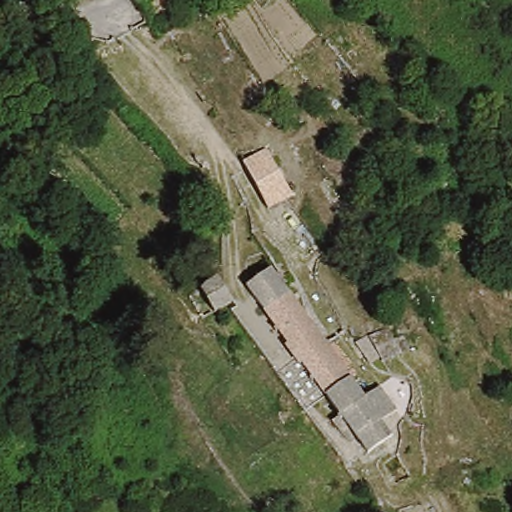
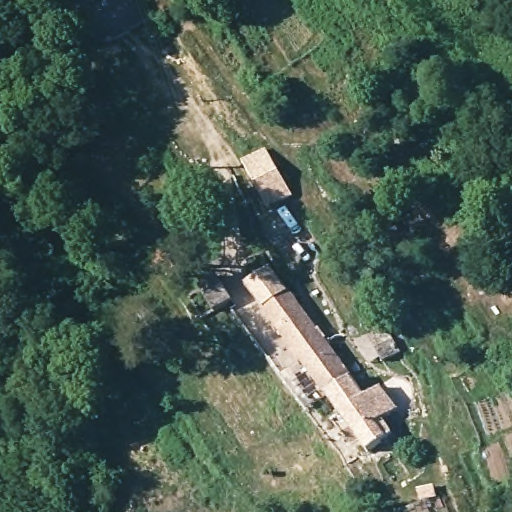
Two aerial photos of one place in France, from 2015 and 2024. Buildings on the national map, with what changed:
unchanged [(268,210),(245,166),(266,156),(288,201),(268,210)]
unchanged [(254,281),(281,266),(348,375),(323,388),(254,281)]
unchanged [(226,269),(237,292),(218,302),(206,278),(226,269)]
unchanged [(196,330),(160,352),(135,318),(126,306),(164,280),(171,289),(196,330)]
unchanged [(406,345),(375,358),(365,343),(377,337),(372,327),(392,319),(399,331),(406,345)]
unchanged [(381,450),(367,458),(323,388),(348,375),(364,399),(381,390),(401,422),(387,429),(394,442),(381,450)]

